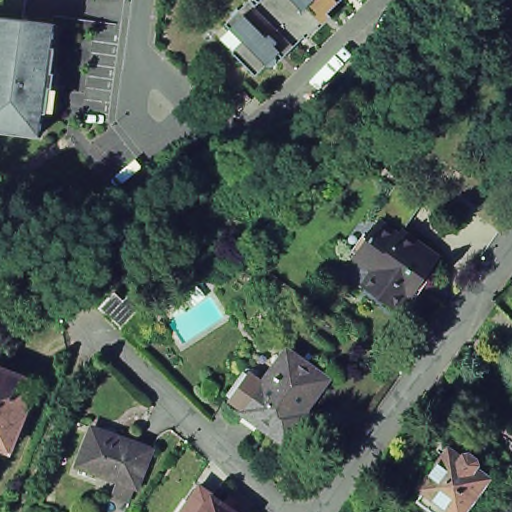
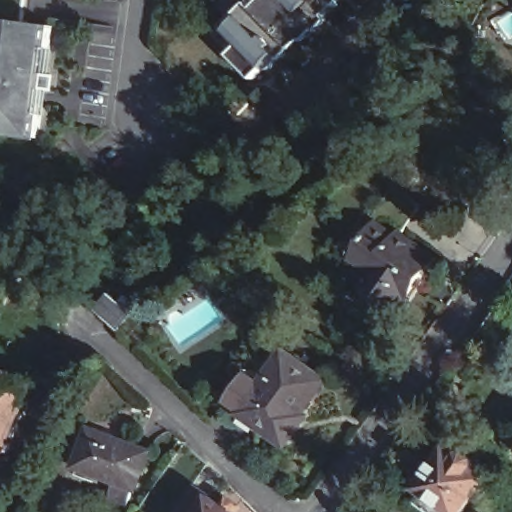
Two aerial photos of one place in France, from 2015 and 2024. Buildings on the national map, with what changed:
unchanged [(16,0),(13,25),(0,23),(0,0),(16,0)]
unchanged [(323,9),(318,14),(317,19),(303,34),(300,31),(292,40),(295,42),(281,55),(274,47),(270,51),(275,55),(275,57),(275,59),(275,62),(273,62),(270,64),(268,64),(265,62),(255,73),(237,55),(247,45),(225,22),(231,15),(230,12),(235,6),(238,9),(247,0),(337,0),(325,12),(323,9)]
unchanged [(13,25),(45,30),(41,62),(36,61),(34,77),(45,78),(42,94),(31,92),(30,107),(35,109),(30,141),(0,136),(0,23),(13,25)]
unchanged [(248,102),(238,114),(230,107),(240,95),(248,102)]
unchanged [(393,212),(449,257),(413,302),(356,257),(393,212)]
unchanged [(127,303),(135,296),(147,307),(126,329),(103,307),(117,295),(127,303)]
unchanged [(481,335),(500,309),(512,322),(512,348),(507,354),(481,335)]
unchanged [(291,352),(331,380),(307,413),(311,417),(293,443),(247,413),(291,352)]
unchanged [(48,390),(18,457),(0,449),(0,369),(48,390)]
unchanged [(82,462),(96,425),(155,446),(141,485),(82,462)]
unchanged [(434,488),(430,485),(428,477),(434,469),(440,468),(458,446),(470,455),(475,449),(488,460),(483,465),(498,477),(495,481),(499,485),(495,490),(490,487),(471,512),(465,512),(463,511),(463,512),(444,512),(426,498),(434,488)]
unchanged [(214,493),(226,501),(242,512),(201,512),(214,493)]

